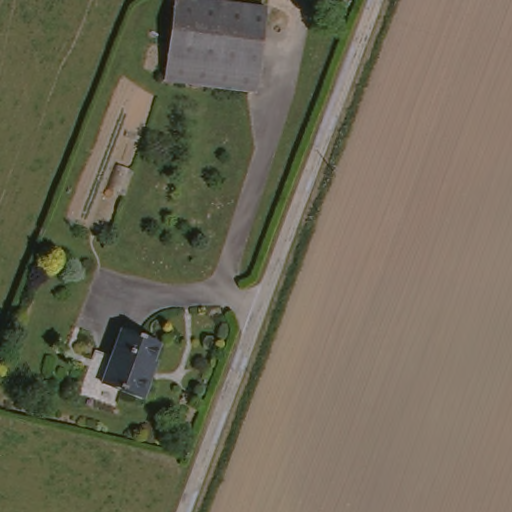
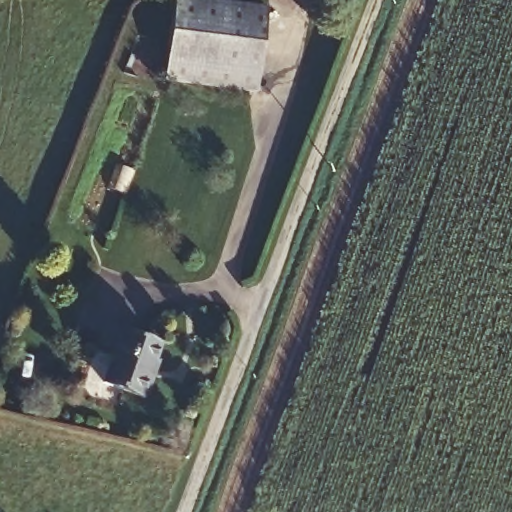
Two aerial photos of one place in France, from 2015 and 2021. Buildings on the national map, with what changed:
unchanged [(155,85),(167,0),(222,0),(270,4),(255,100),(155,85)]
unchanged [(79,401),(95,358),(112,364),(124,333),(165,349),(145,401),(122,393),(104,386),(95,407),(79,401)]

